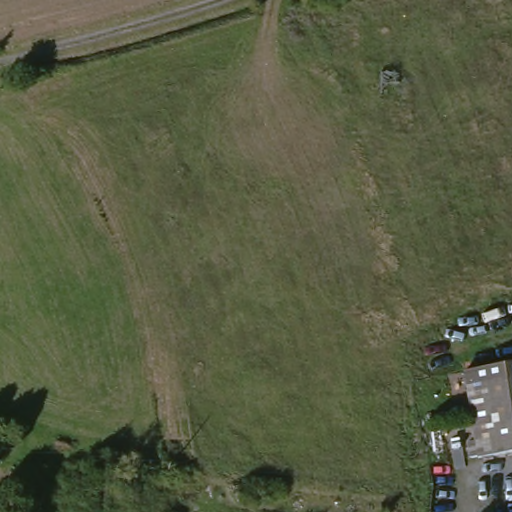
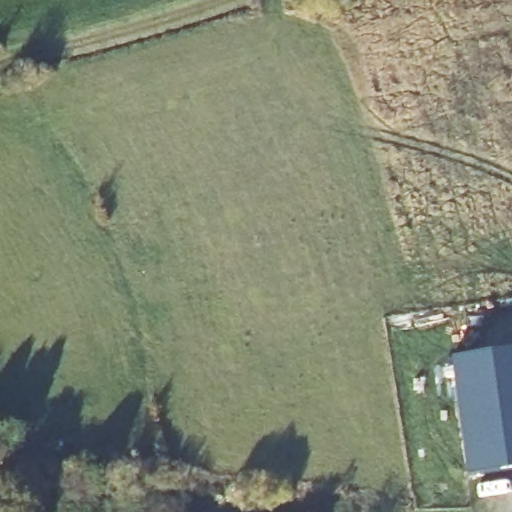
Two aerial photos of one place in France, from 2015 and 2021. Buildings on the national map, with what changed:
new [(512,348),(512,470),(468,477),(450,358),(512,348)]
demolished [(487,464),(487,460),(480,461),(478,452),(485,450),(472,373),(512,365),(512,458),(487,464)]
unchanged [(15,512),(0,512),(0,500),(15,502),(15,512)]

